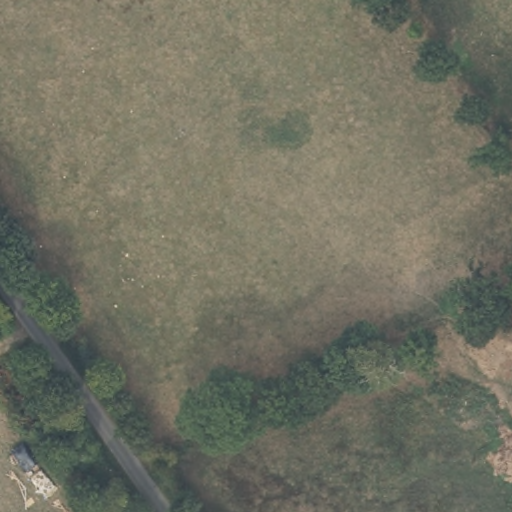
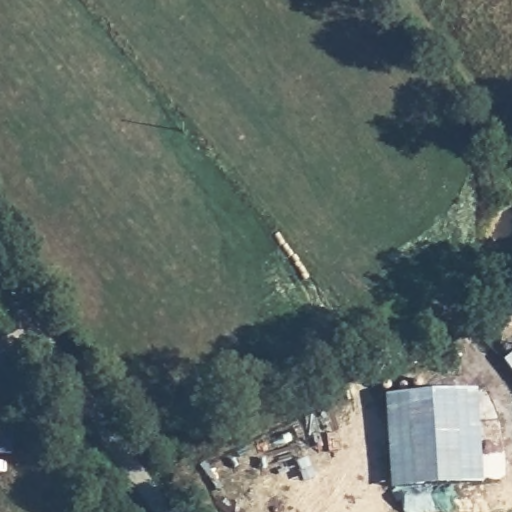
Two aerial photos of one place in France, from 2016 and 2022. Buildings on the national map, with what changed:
new [(386,394),(479,388),(485,482),(392,489),(386,394)]

